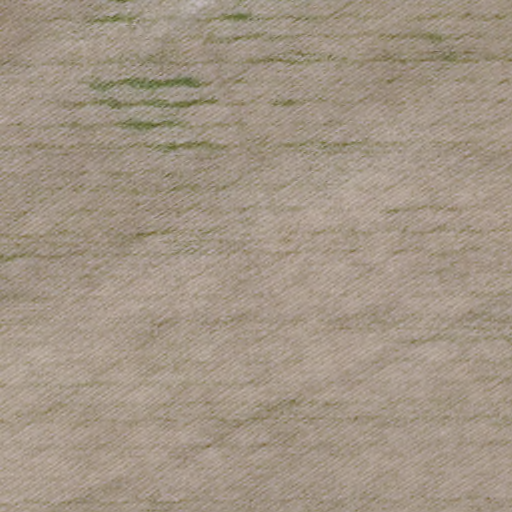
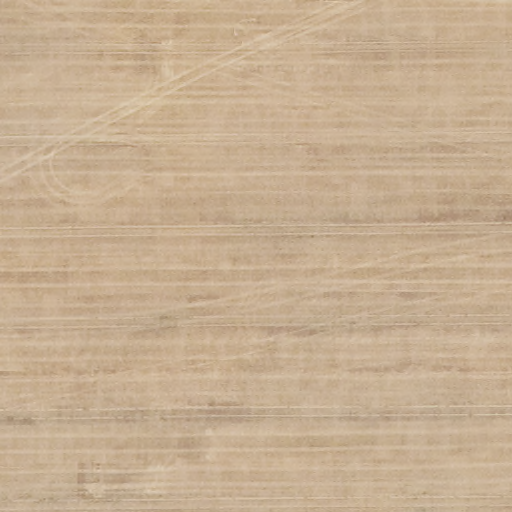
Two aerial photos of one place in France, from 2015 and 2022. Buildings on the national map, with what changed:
[]

